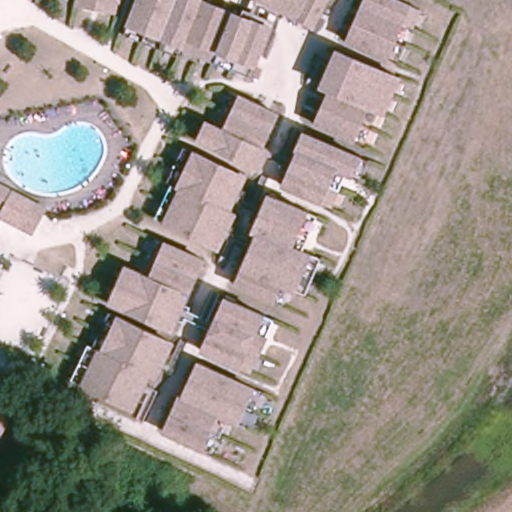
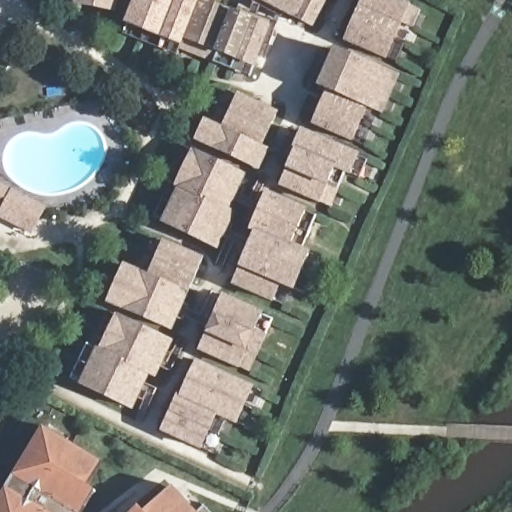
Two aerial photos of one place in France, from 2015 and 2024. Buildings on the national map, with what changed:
unchanged [(76,2),(76,0),(115,0),(114,10),(76,2)]
unchanged [(139,0),(201,0),(199,5),(269,33),(253,70),(184,42),(181,50),(128,28),(139,0)]
unchanged [(315,27),(261,0),(328,0),(315,27)]
unchanged [(384,55),(347,37),(365,0),(402,0),(408,3),(424,10),(416,27),(408,45),(400,62),(384,55)]
unchanged [(249,82),(179,54),(177,61),(123,40),(128,28),(181,50),(184,42),(253,70),(249,82)]
unchanged [(384,112),(380,110),(364,144),(352,139),(316,121),(332,87),(323,83),(339,48),(390,71),(401,77),(384,112)]
unchanged [(262,142),(269,145),(261,164),(210,140),(199,135),(208,116),(214,120),(230,85),(242,91),(278,108),(262,142)]
unchanged [(319,201),(282,185),(307,131),(357,155),(369,160),(360,179),(349,174),(346,172),(330,207),(319,201)]
unchanged [(161,224),(156,220),(173,180),(171,178),(184,147),(194,151),(249,176),(233,211),(237,215),(219,252),(161,224)]
unchanged [(44,205),(27,236),(0,221),(0,181),(44,205)]
unchanged [(258,254),(256,252),(244,247),(260,212),(269,216),(277,199),(288,204),(325,220),(302,272),(307,274),(291,310),(254,293),(242,288),(258,254)]
unchanged [(112,303),(129,268),(140,273),(142,274),(158,240),(169,246),(206,263),(174,332),(124,308),(112,303)]
unchanged [(235,370),(198,353),(222,300),(259,317),(274,324),(266,341),(259,360),(251,376),(235,370)]
unchanged [(153,376),(137,410),(87,386),(75,381),(92,346),(97,348),(112,315),(124,320),(174,343),(157,378),(153,376)]
unchanged [(200,447),(163,430),(179,395),(184,397),(200,363),(250,386),(261,391),(246,426),(234,421),(228,418),(212,452),(200,447)]
unchanged [(5,419),(0,429),(0,417),(5,419)]
new [(0,512),(0,503),(8,490),(18,477),(44,431),(99,462),(73,510),(76,512),(0,512)]
new [(199,512),(149,512),(175,486),(199,512)]
new [(211,512),(203,512),(207,507),(211,512)]
new [(145,512),(138,512),(142,508),(145,512)]

